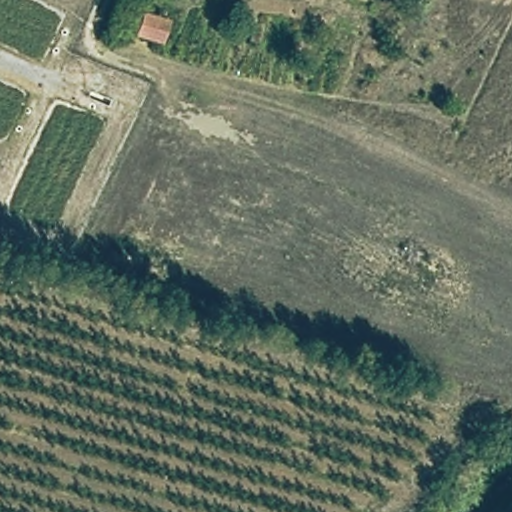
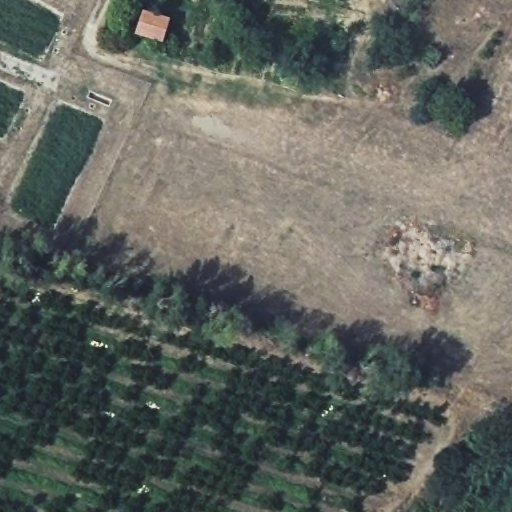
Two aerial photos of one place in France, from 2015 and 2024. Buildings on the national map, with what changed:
unchanged [(172,23),(165,43),(138,40),(144,18),(172,23)]

